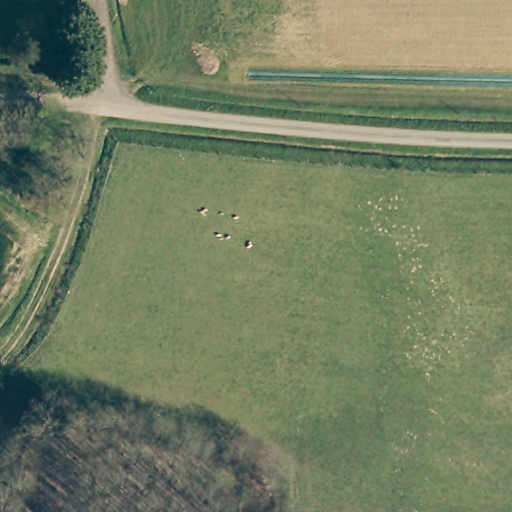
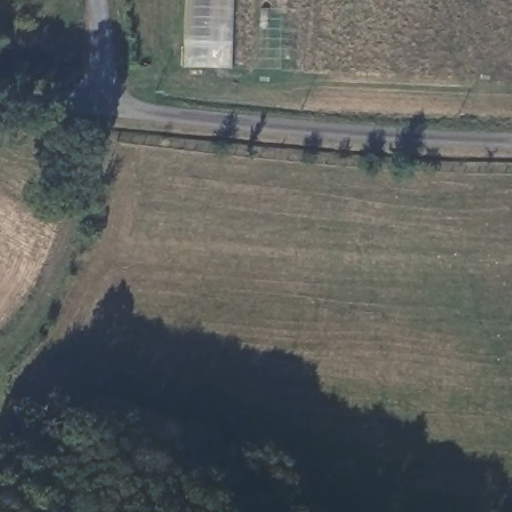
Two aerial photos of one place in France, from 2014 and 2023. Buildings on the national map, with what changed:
new [(228,67),(189,66),(191,0),(229,0),(228,67)]

